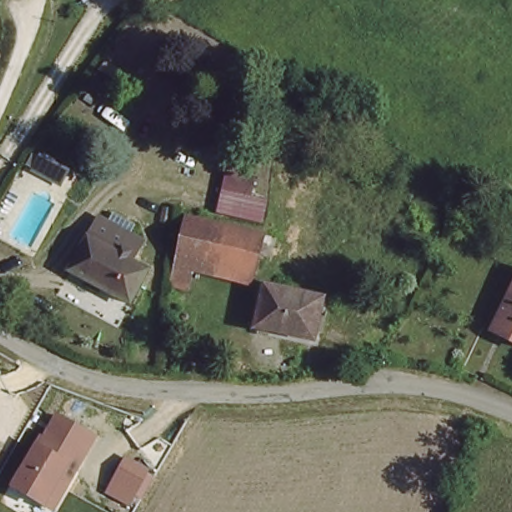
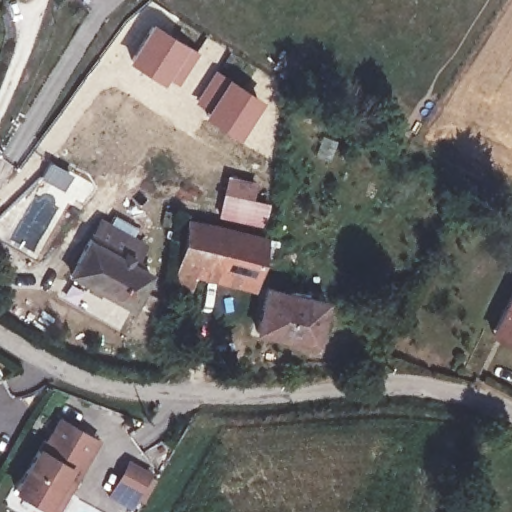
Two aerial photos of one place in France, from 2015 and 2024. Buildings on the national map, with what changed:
new [(153,21),(188,46),(161,85),(125,61),(153,21)]
new [(214,68),(263,100),(235,139),(201,116),(204,112),(192,104),(214,68)]
unchanged [(267,202),(256,227),(236,220),(233,215),(247,191),(267,202)]
unchanged [(268,245),(258,290),(193,270),(191,291),(174,288),(179,222),(268,245)]
unchanged [(103,231),(142,252),(129,275),(143,283),(127,313),(74,284),(103,231)]
unchanged [(329,295),(319,343),(257,332),(267,282),(329,295)]
unchanged [(498,329),(512,304),(512,338),(498,329)]
unchanged [(61,512),(49,512),(13,492),(58,416),(101,439),(61,512)]
unchanged [(141,499),(131,494),(126,503),(109,494),(126,461),(153,475),(141,499)]

